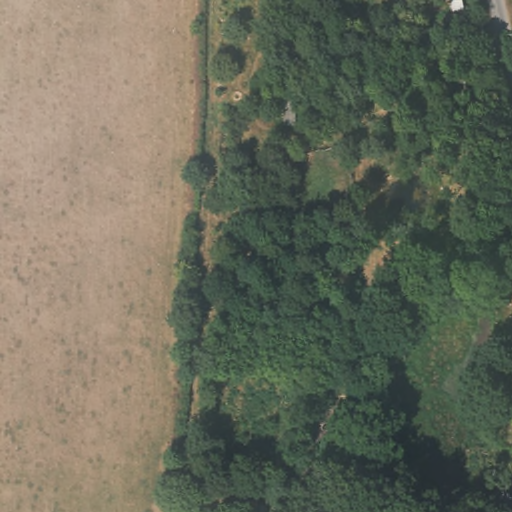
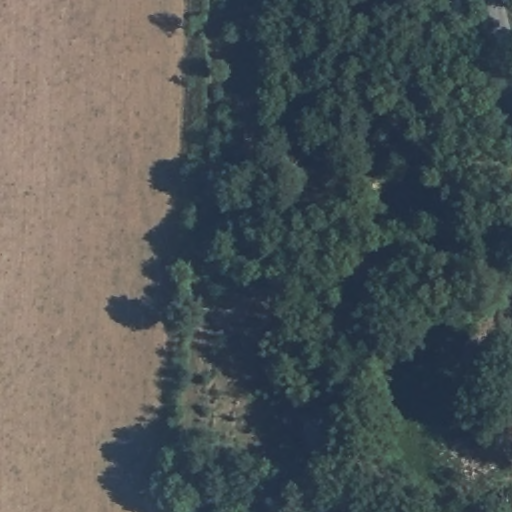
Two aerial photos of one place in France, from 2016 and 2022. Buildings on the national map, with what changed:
[]

